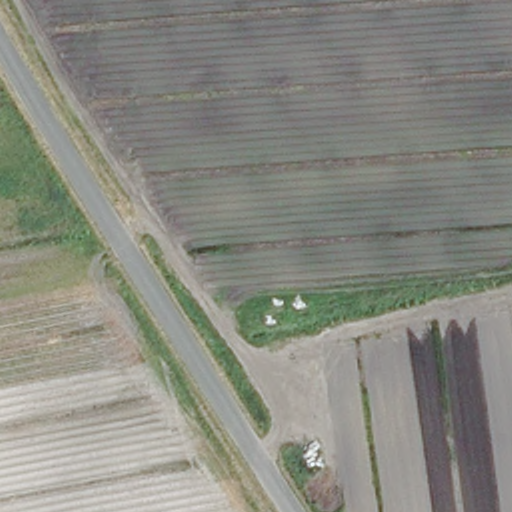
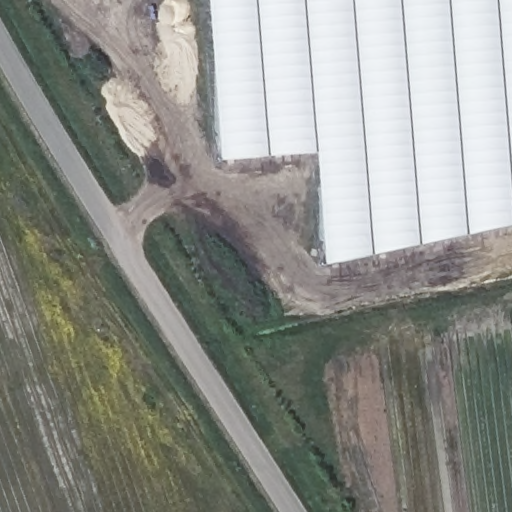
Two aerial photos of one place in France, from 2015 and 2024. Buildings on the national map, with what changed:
new [(327,269),(319,156),(222,164),(210,0),(512,0),(512,230),(327,269)]
demolished [(312,497),(303,471),(328,461),(340,488),(312,497)]

